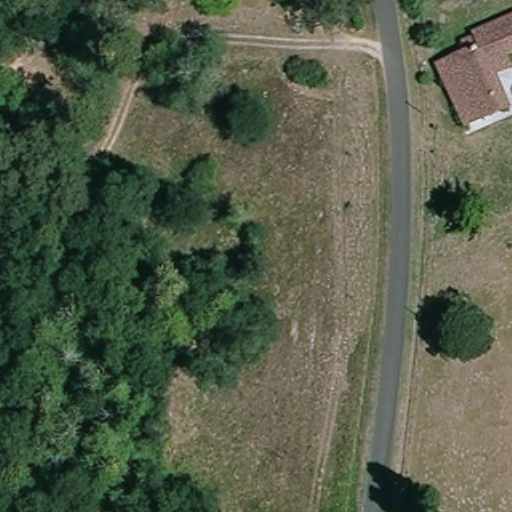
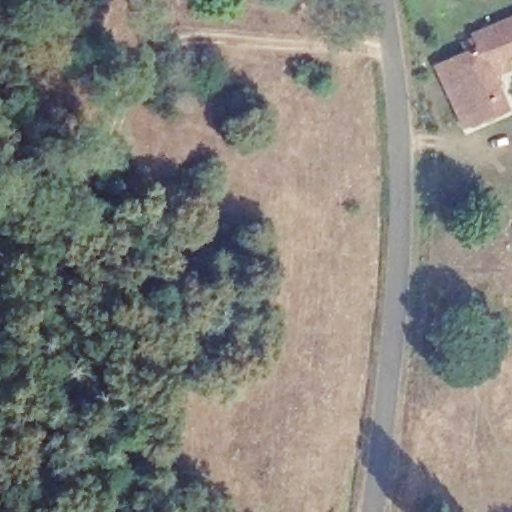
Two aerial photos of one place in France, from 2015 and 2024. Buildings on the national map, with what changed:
unchanged [(510,46),(512,50),(512,63),(498,71),(484,43),(479,32),(512,15),(512,45),(510,46)]
unchanged [(484,43),(498,71),(509,95),(463,117),(439,66),(484,43)]

